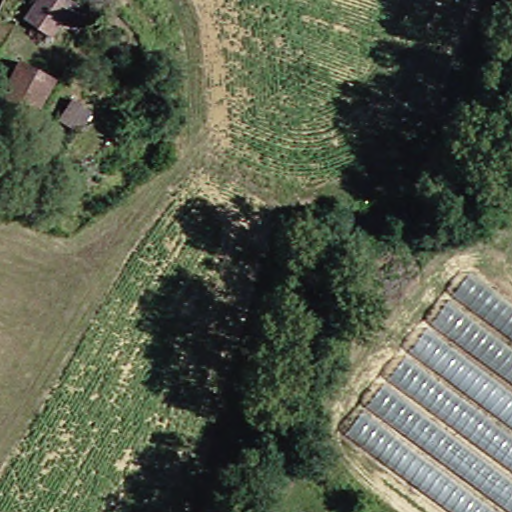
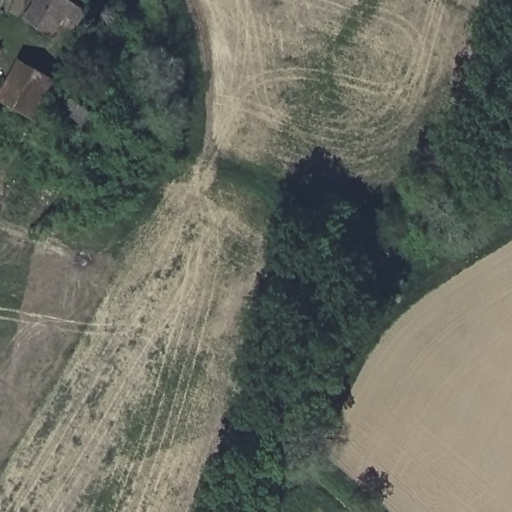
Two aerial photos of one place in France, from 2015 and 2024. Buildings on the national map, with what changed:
unchanged [(65,34),(33,18),(42,0),(62,0),(65,1),(66,0),(83,0),(65,34)]
unchanged [(7,96),(11,89),(25,61),(46,71),(59,78),(46,104),(42,114),(7,96)]
unchanged [(72,103),(83,83),(105,97),(95,118),(72,103)]
unchanged [(512,311),(512,392),(422,326),(463,275),(512,311)]
unchanged [(512,433),(404,353),(422,326),(512,392),(512,433)]
new [(512,512),(450,512),(345,433),(404,353),(512,433),(512,512)]

